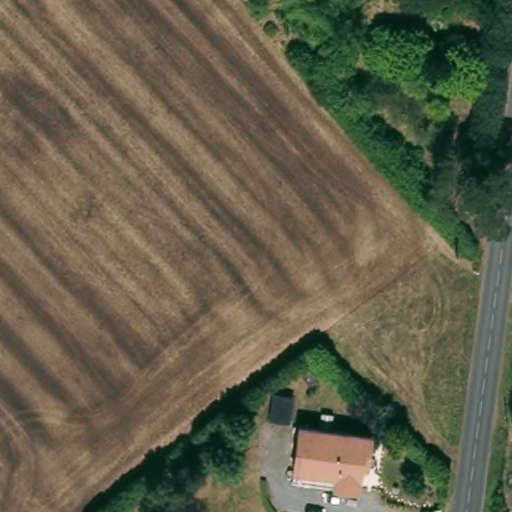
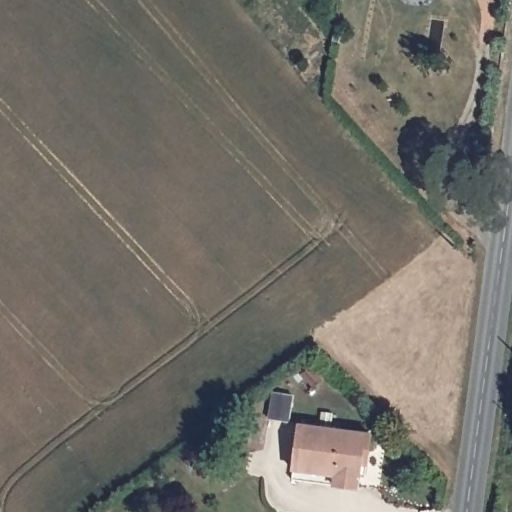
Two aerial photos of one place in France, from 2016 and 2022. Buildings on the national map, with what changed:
unchanged [(301,427),(302,422),(353,428),(368,431),(371,433),(367,453),(366,463),(362,463),(360,481),(358,487),(346,484),(307,479),(296,477),(295,475),(301,427)]

